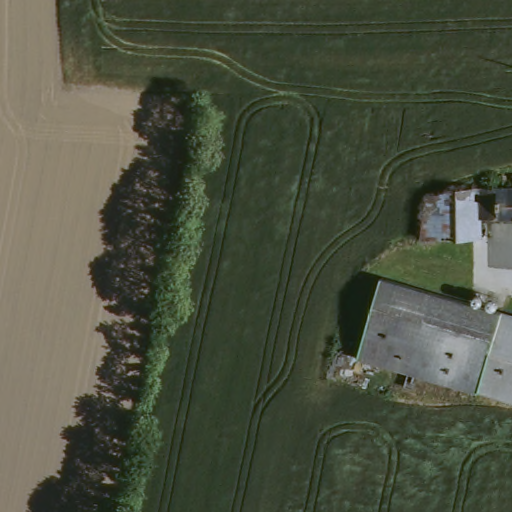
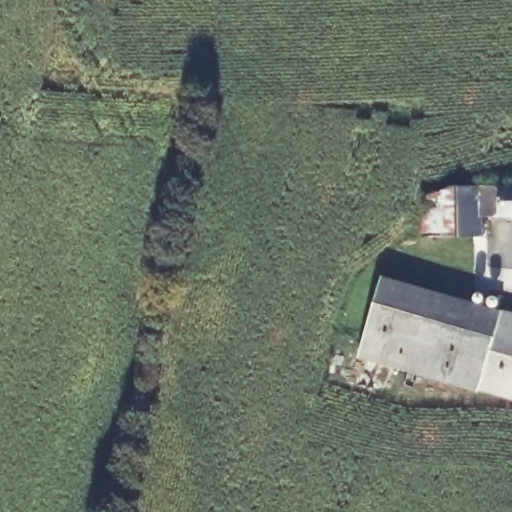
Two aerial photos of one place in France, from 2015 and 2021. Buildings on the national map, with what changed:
unchanged [(478,239),(421,239),(421,197),(444,189),(508,189),(508,177),(512,177),(512,217),(478,217),(478,239)]
unchanged [(500,315),(512,318),(512,400),(478,392),(477,396),(360,366),(378,284),(500,315)]

